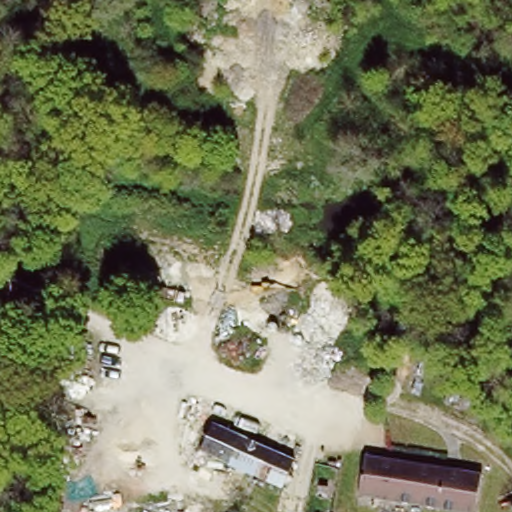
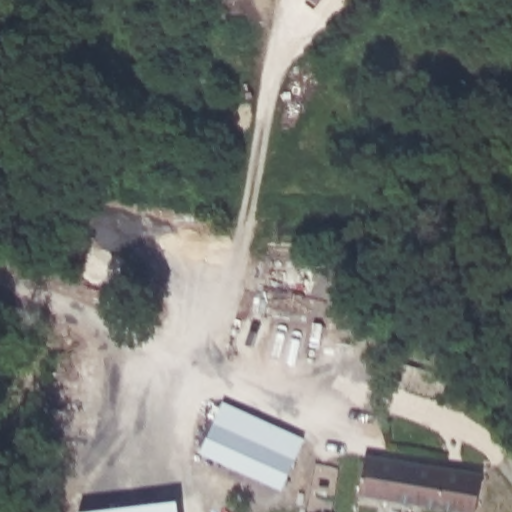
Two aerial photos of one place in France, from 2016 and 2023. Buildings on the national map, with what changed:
new [(287,488),(201,448),(223,400),(304,437),(289,475),(287,488)]
demolished [(286,490),(205,451),(217,423),(299,461),(296,475),(286,490)]
unchanged [(476,512),(460,512),(360,492),(368,453),(482,478),(476,512)]
new [(179,498),(181,512),(77,512),(77,511),(179,498)]

